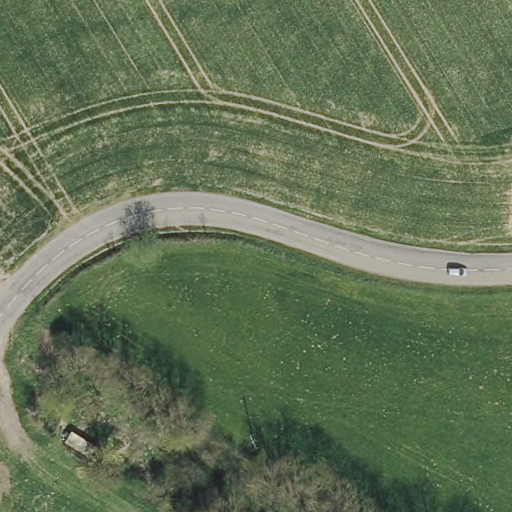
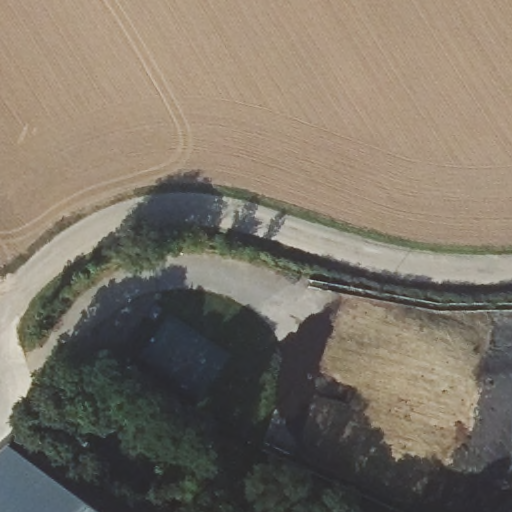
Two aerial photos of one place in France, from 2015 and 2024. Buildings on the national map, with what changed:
new [(88,508),(94,512),(0,512),(0,451),(6,445),(88,508)]

